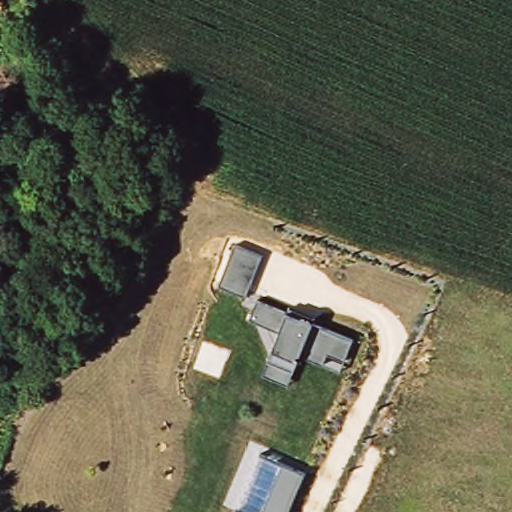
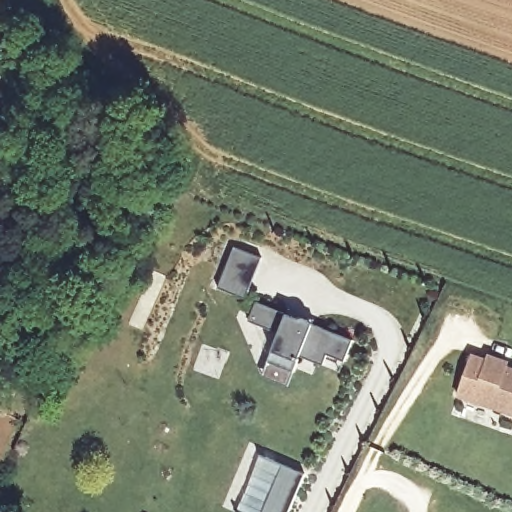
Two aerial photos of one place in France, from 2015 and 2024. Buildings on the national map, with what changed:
new [(23,64),(0,74),(0,42),(13,37),(23,64)]
unchanged [(217,287),(232,245),(262,255),(245,297),(217,287)]
unchanged [(278,330),(249,318),(256,301),(284,313),(287,306),(315,317),(312,323),(353,340),(340,371),(300,355),(288,385),(262,374),(278,330)]
new [(471,353),(485,358),(487,354),(510,362),(509,365),(512,367),(512,417),(455,396),(471,353)]
unchanged [(288,512),(235,512),(241,498),(263,507),(277,474),(256,466),(260,454),(305,472),(288,512)]

